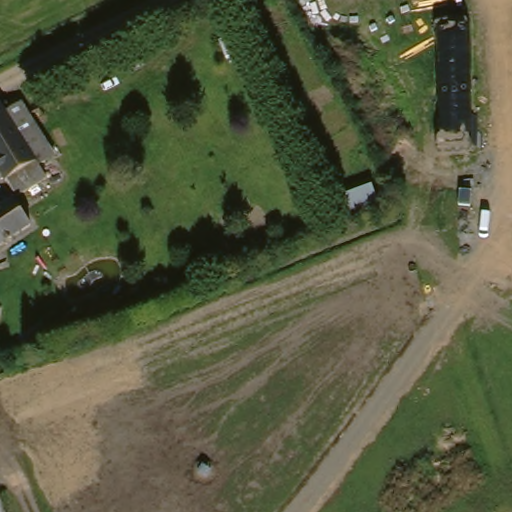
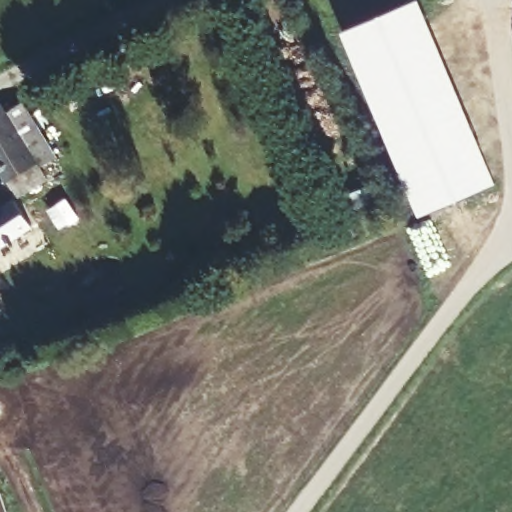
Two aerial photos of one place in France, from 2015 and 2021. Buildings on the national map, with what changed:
new [(416,1),(494,185),(421,217),(342,32),(416,1)]
unchanged [(24,192),(19,196),(0,165),(0,117),(8,112),(14,122),(30,114),(62,165),(46,175),(49,177),(24,192)]
unchanged [(0,194),(6,205),(15,199),(30,226),(0,245),(0,194)]

